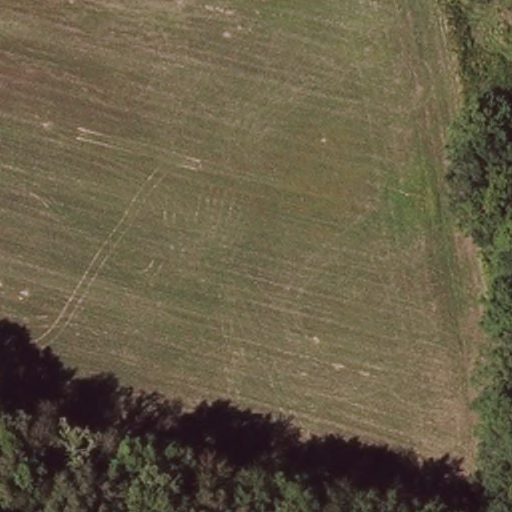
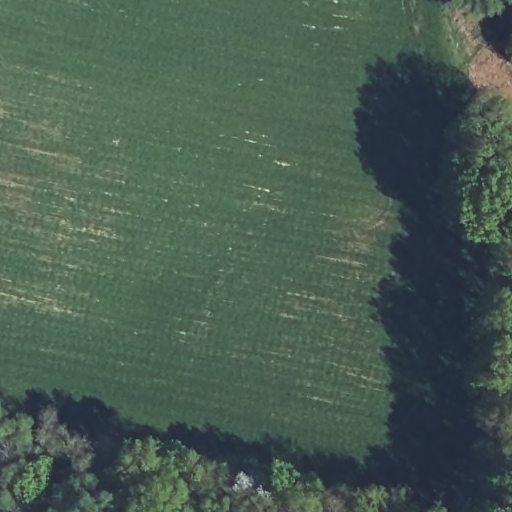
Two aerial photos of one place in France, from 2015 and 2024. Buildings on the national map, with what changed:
[]

